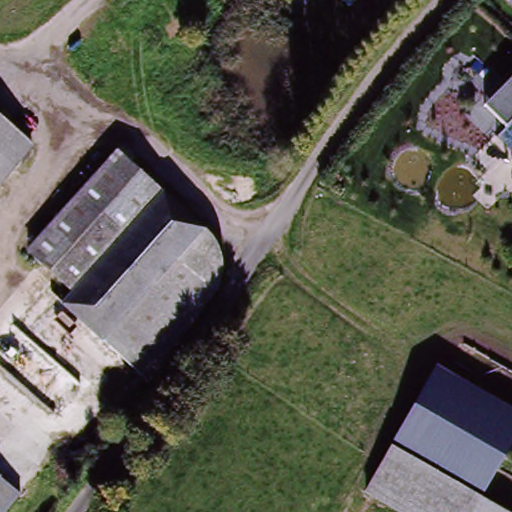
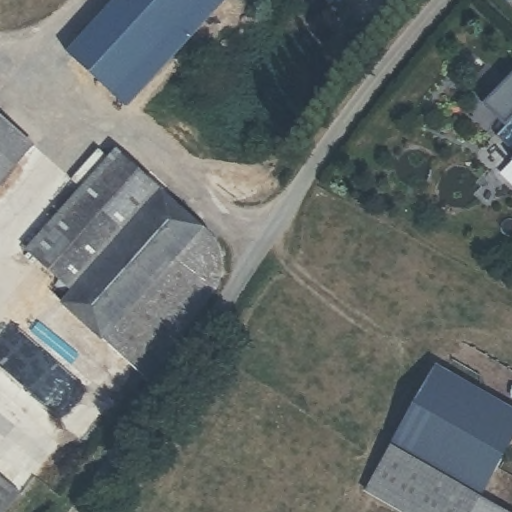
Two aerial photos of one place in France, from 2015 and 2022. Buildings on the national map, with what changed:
new [(206,0),(113,96),(69,55),(122,0),(206,0)]
unchanged [(485,110),(512,84),(512,122),(504,130),(485,110)]
unchanged [(32,150),(0,184),(0,121),(32,150)]
unchanged [(71,290),(29,250),(124,152),(220,247),(225,280),(147,378),(60,302),(71,290)]
unchanged [(512,408),(512,435),(429,385),(440,366),(512,408)]
unchanged [(512,435),(512,437),(489,476),(404,426),(429,385),(512,435)]
unchanged [(489,476),(476,500),(390,450),(404,426),(489,476)]
unchanged [(363,493),(390,450),(476,500),(469,512),(394,512),(363,493)]
unchanged [(20,496),(7,512),(0,512),(0,480),(20,496)]
unchanged [(476,500),(496,512),(469,512),(476,500)]

